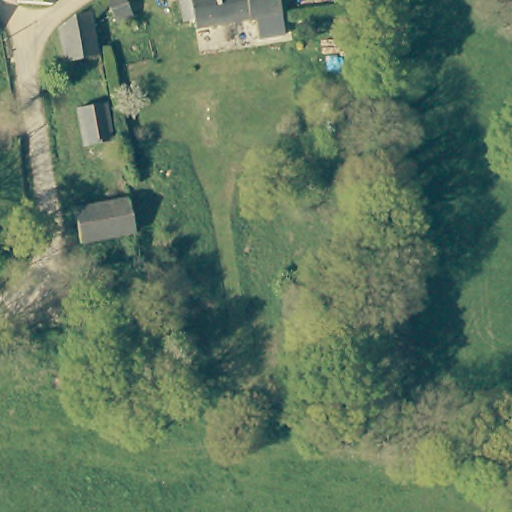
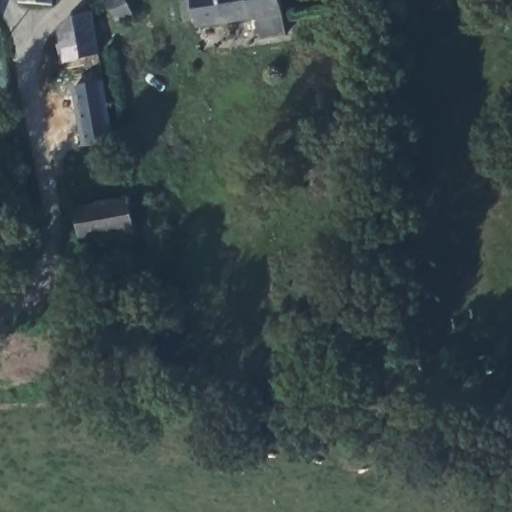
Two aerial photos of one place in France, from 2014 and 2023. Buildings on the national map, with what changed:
unchanged [(57,0),(57,1),(52,4),(21,2),(21,0),(57,0)]
unchanged [(119,17),(110,0),(140,0),(143,10),(119,17)]
unchanged [(190,2),(189,0),(277,0),(280,19),(279,19),(281,40),(256,42),(254,21),(194,28),(192,20),(182,22),(179,3),(190,2)]
unchanged [(91,7),(99,53),(62,59),(56,26),(76,9),(91,7)]
unchanged [(107,140),(81,145),(77,107),(102,104),(107,140)]
unchanged [(126,197),(133,232),(114,235),(75,241),(71,206),(126,197)]

